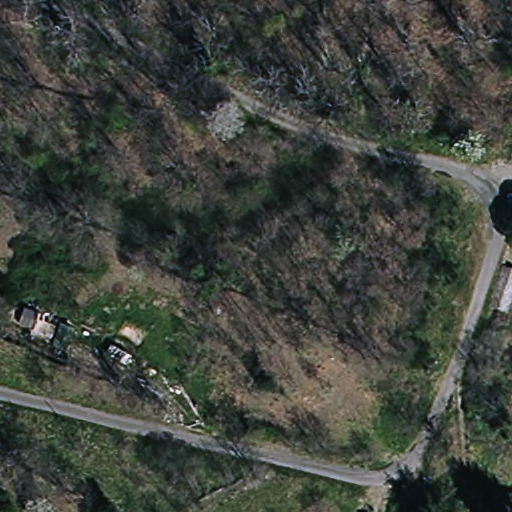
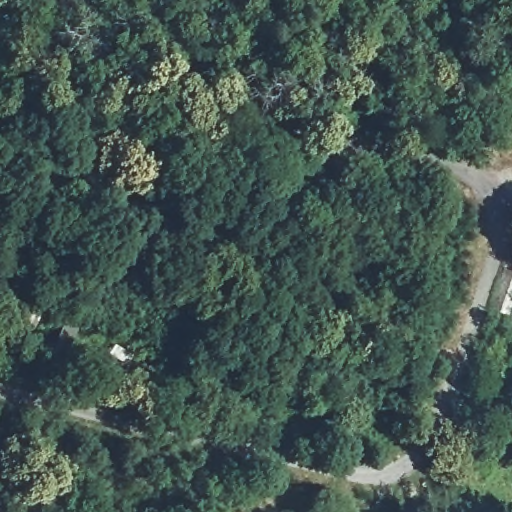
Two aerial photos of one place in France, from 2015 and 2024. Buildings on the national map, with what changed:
unchanged [(512,267),(512,310),(495,306),(507,265),(512,267)]

